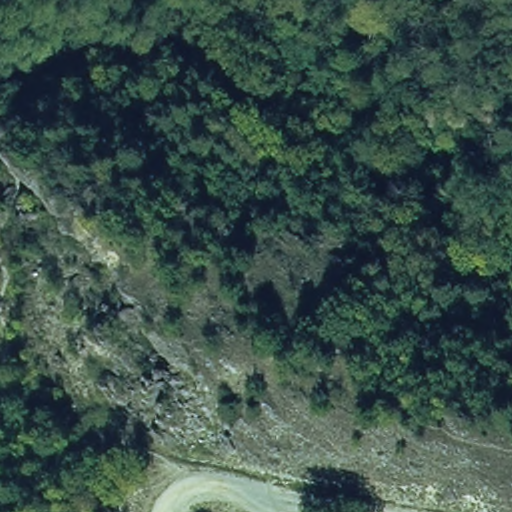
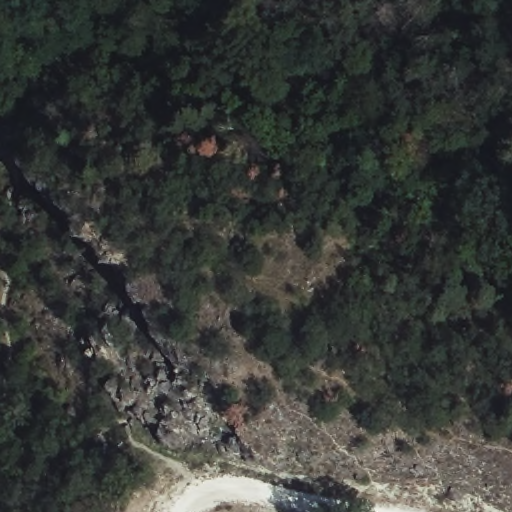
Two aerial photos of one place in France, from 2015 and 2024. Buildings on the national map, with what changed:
[]

